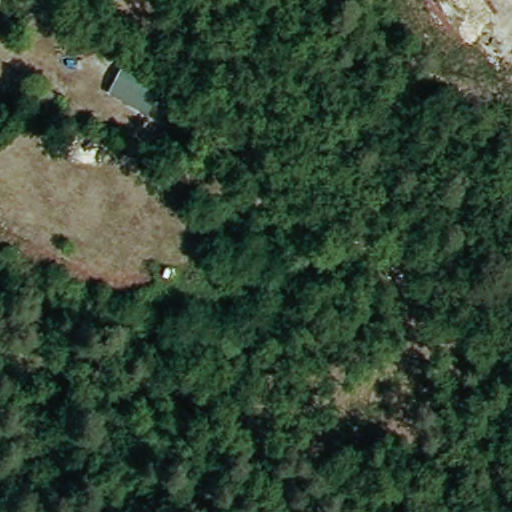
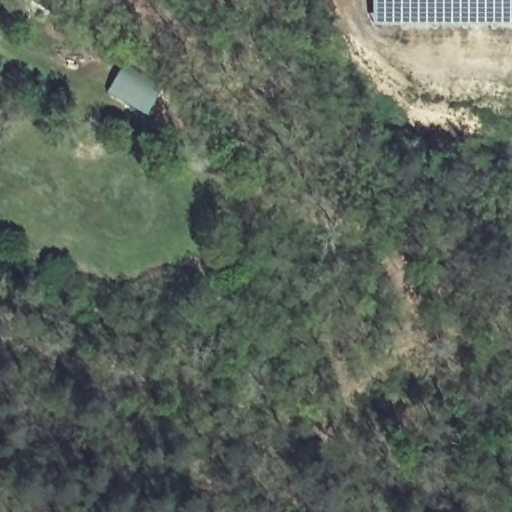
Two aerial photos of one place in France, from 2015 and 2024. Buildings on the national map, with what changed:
new [(372,0),(512,0),(512,25),(494,25),(372,25),(372,0)]
unchanged [(182,88),(163,121),(98,85),(117,53),(182,88)]

